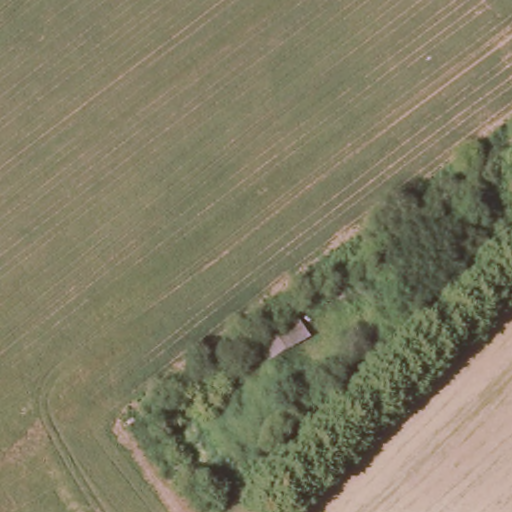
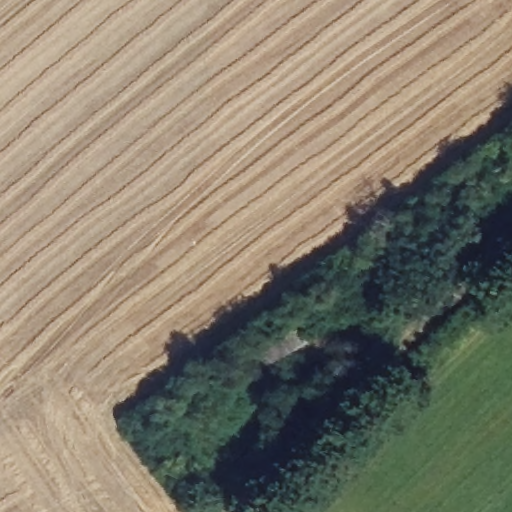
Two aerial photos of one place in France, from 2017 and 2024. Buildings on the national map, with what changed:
unchanged [(271,367),(253,330),(286,301),(304,338),(271,367)]

